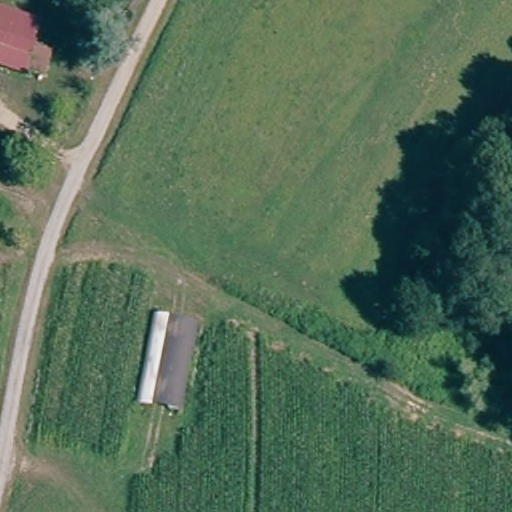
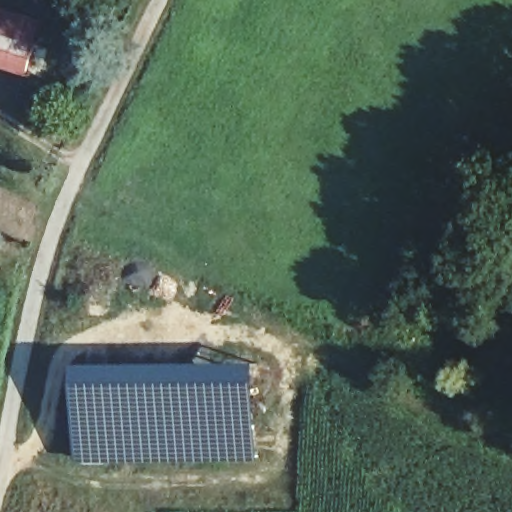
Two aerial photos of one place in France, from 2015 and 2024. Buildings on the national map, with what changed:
unchanged [(0,8),(41,21),(30,71),(0,61),(0,8)]
new [(260,461),(79,462),(78,365),(260,361),(260,461)]

